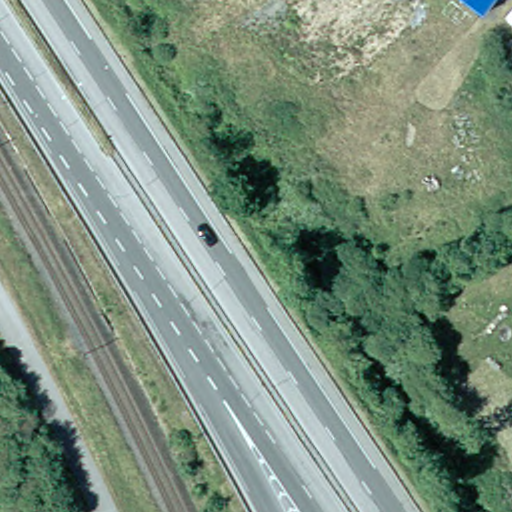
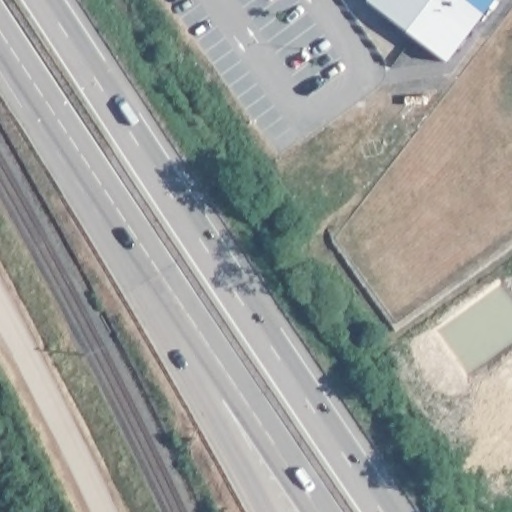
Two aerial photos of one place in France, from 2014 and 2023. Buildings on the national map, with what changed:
new [(442,60),(365,0),(458,0),(476,15),(442,60)]
unchanged [(488,0),(476,15),(458,0),(488,0)]

